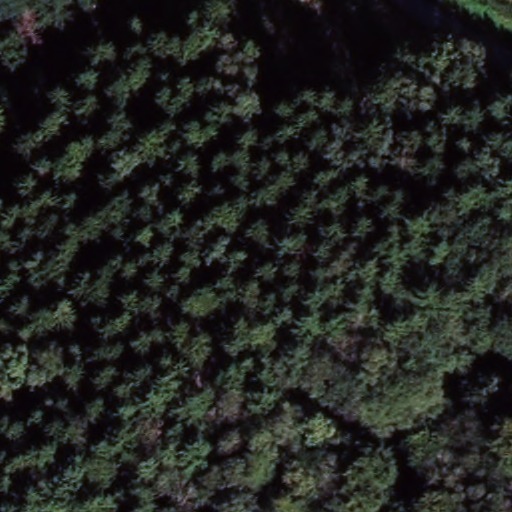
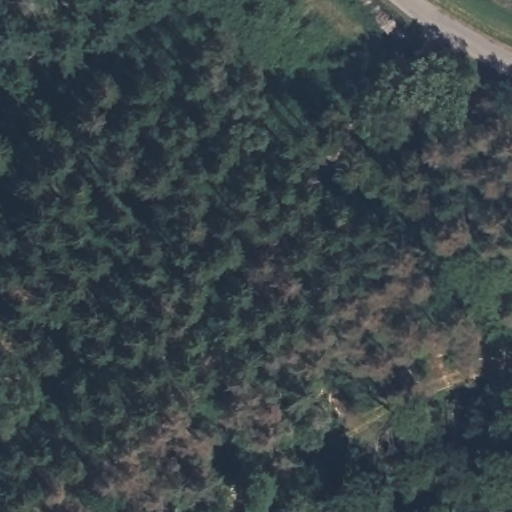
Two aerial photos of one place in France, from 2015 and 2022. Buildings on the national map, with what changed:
[]

